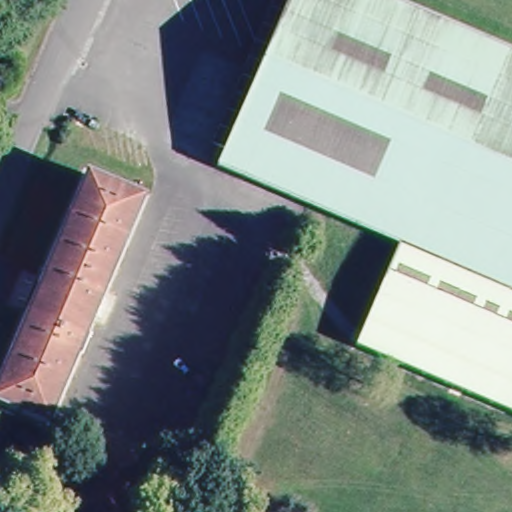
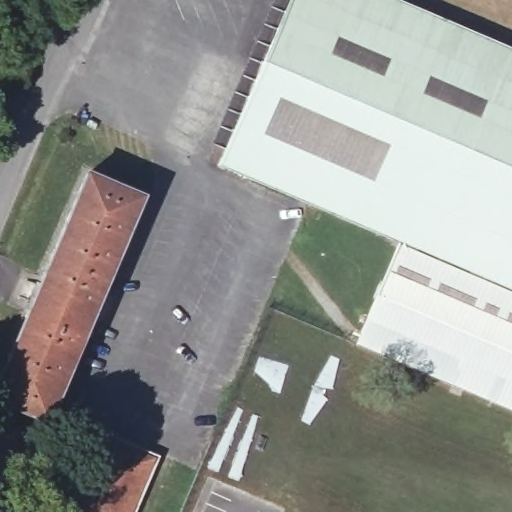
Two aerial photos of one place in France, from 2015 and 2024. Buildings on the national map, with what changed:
unchanged [(355,341),(399,244),(215,161),(259,61),(284,0),(405,0),(512,45),(512,409),(355,341)]
unchanged [(0,407),(0,364),(84,169),(143,194),(48,426),(0,407)]
unchanged [(136,512),(62,512),(99,424),(161,453),(136,512)]

